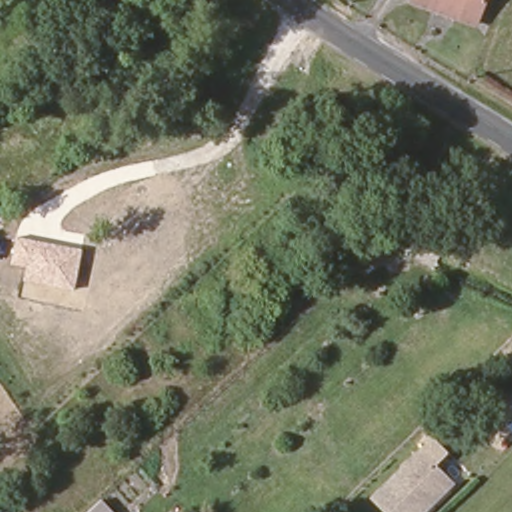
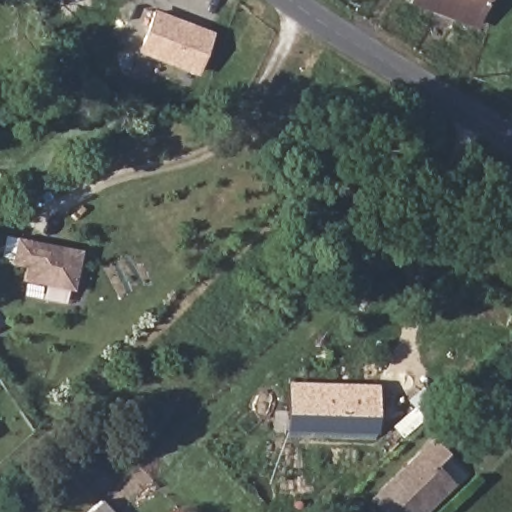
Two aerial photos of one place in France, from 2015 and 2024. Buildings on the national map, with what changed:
unchanged [(427,4),(429,0),(488,0),(485,9),(480,23),(427,4)]
new [(197,76),(136,52),(153,8),(213,32),(197,76)]
unchanged [(82,249),(74,290),(23,281),(26,266),(11,265),(16,237),(82,249)]
new [(377,382),(377,433),(284,431),(285,380),(377,382)]
unchanged [(445,454),(432,466),(451,485),(423,512),(386,512),(373,499),(432,442),(445,454)]
unchanged [(92,512),(103,502),(113,512),(92,512)]

